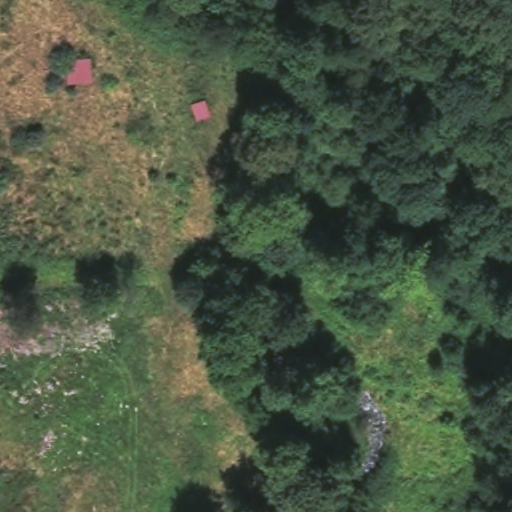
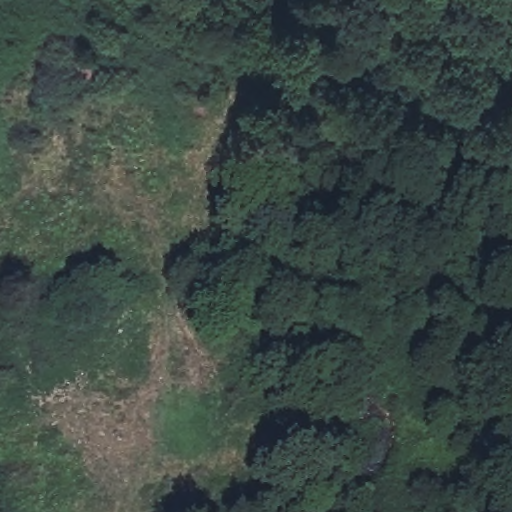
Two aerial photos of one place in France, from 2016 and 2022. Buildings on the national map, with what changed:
unchanged [(63,61),(86,58),(89,79),(66,81),(63,61)]

